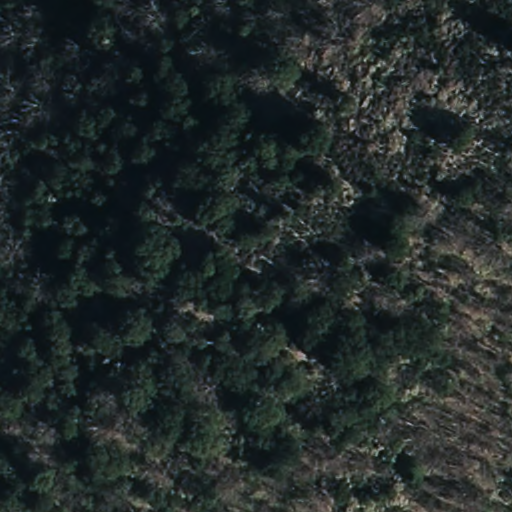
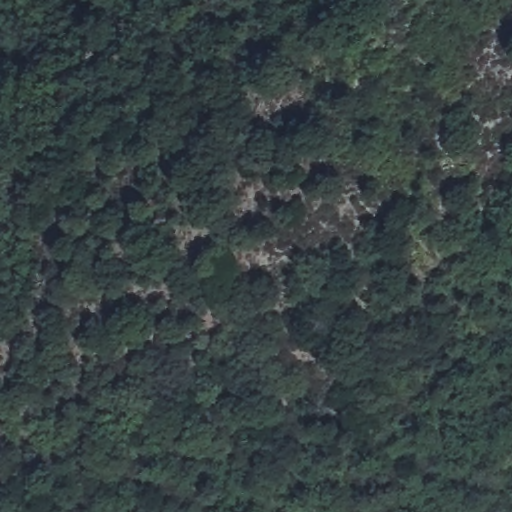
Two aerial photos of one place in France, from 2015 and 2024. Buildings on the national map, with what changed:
[]

